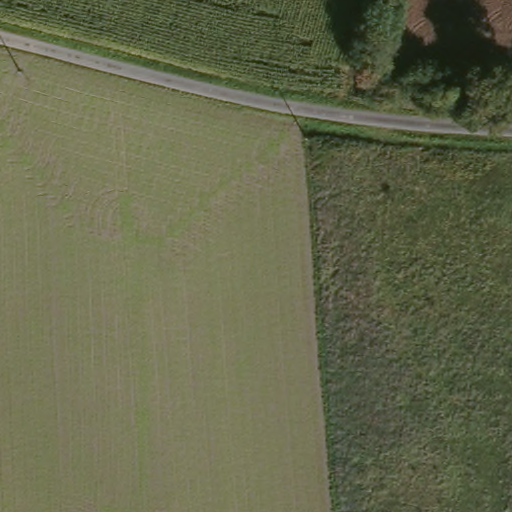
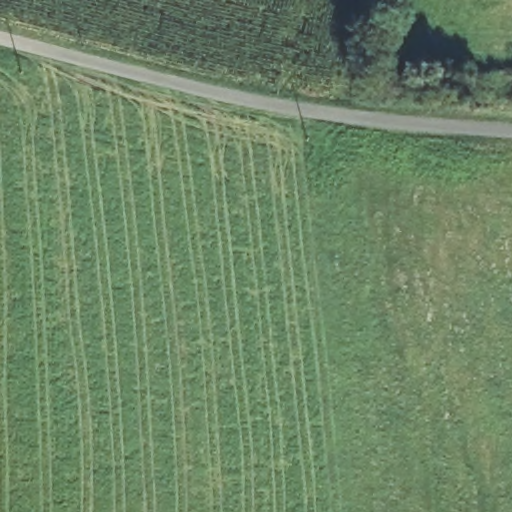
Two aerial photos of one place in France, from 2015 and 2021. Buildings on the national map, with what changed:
[]

